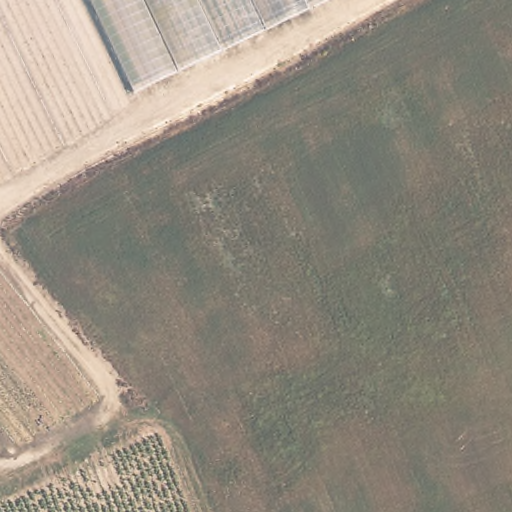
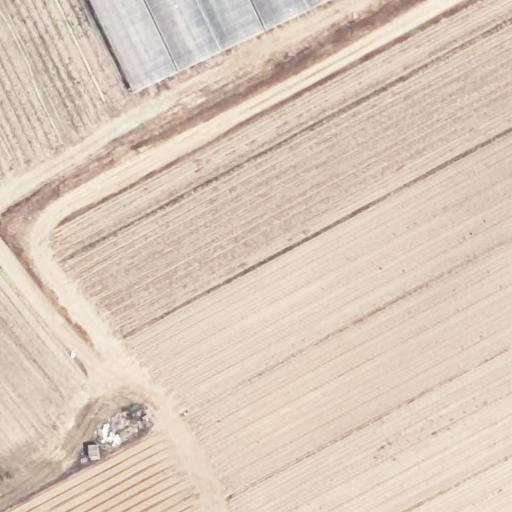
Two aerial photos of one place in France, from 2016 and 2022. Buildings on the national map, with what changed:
unchanged [(134,94),(89,0),(330,0),(134,94)]

